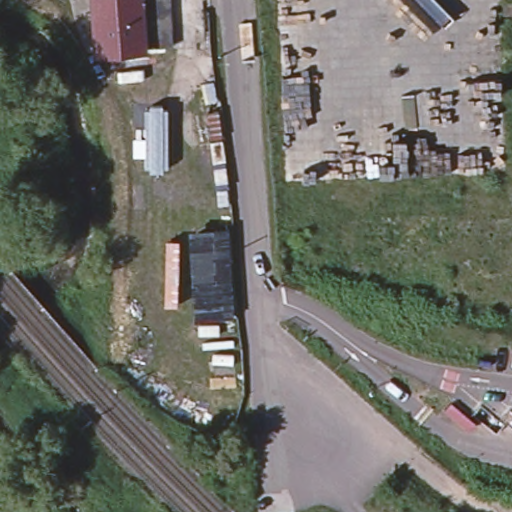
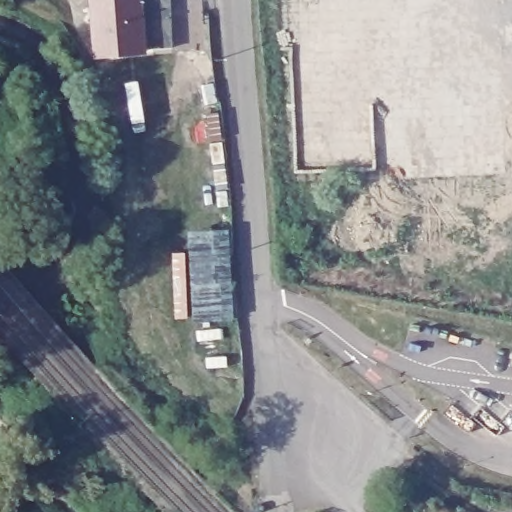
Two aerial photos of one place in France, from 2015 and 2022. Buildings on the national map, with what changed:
unchanged [(91,4),(91,0),(168,0),(170,41),(143,44),(143,46),(113,50),(113,48),(95,50),(91,4)]
unchanged [(191,233),(230,229),(235,319),(197,319),(191,233)]
unchanged [(42,420),(53,411),(69,429),(58,438),(46,448),(31,431),(42,420)]

